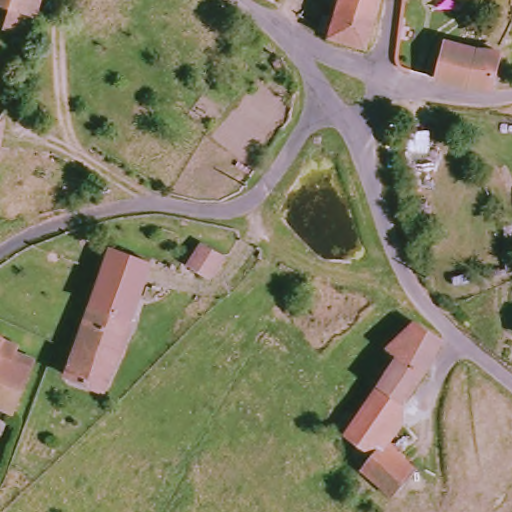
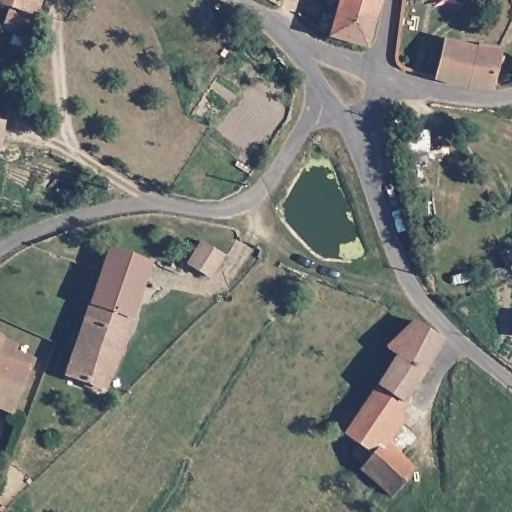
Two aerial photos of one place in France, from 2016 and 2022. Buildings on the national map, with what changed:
unchanged [(15,10),(0,6),(0,0),(44,0),(39,17),(33,38),(8,31),(15,10)]
unchanged [(267,0),(279,0),(275,5),(267,0)]
unchanged [(332,42),(320,34),(322,19),(335,21),(340,0),(381,0),(364,52),(332,42)]
unchanged [(475,82),(460,81),(437,77),(445,40),(471,46),(498,45),(487,81),(475,82)]
unchanged [(3,128),(4,145),(3,148),(0,149),(0,119),(3,119),(3,128)]
unchanged [(70,374),(112,247),(152,262),(107,386),(70,374)]
unchanged [(192,274),(203,252),(225,264),(212,287),(192,274)]
unchanged [(368,262),(375,265),(372,271),(365,269),(368,262)]
unchanged [(392,494),(358,466),(362,459),(355,452),(361,445),(348,433),(397,358),(388,347),(418,319),(426,323),(444,338),(427,373),(397,403),(397,424),(386,439),(417,464),(392,494)]
unchanged [(14,409),(0,404),(0,338),(15,344),(13,350),(33,357),(14,409)]

